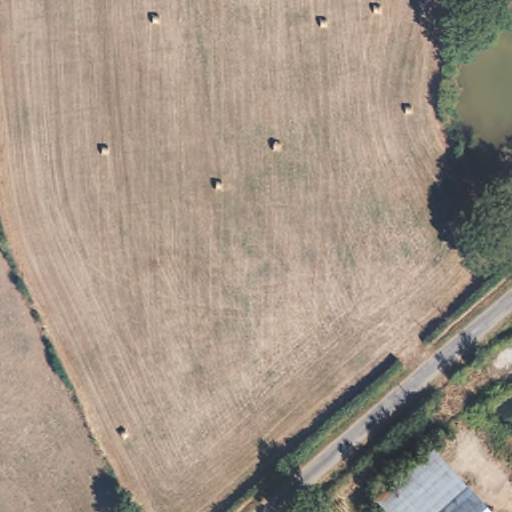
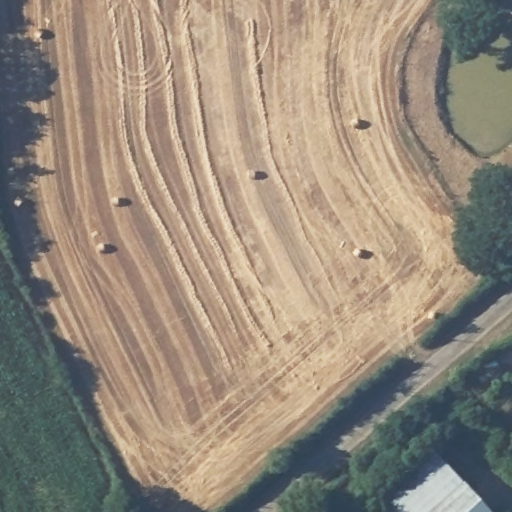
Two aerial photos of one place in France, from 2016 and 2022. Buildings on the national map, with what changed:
unchanged [(486,512),(380,512),(371,501),(433,449),(486,512)]

